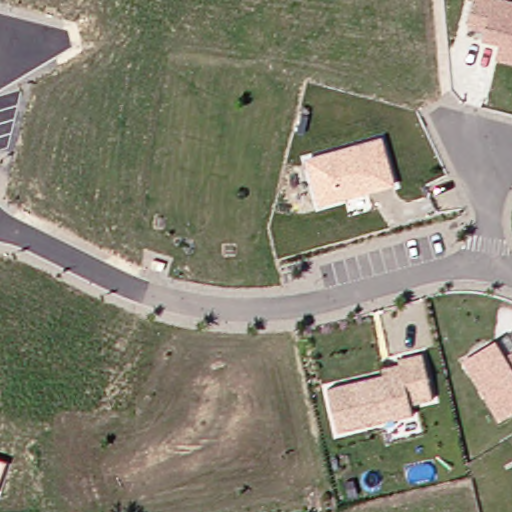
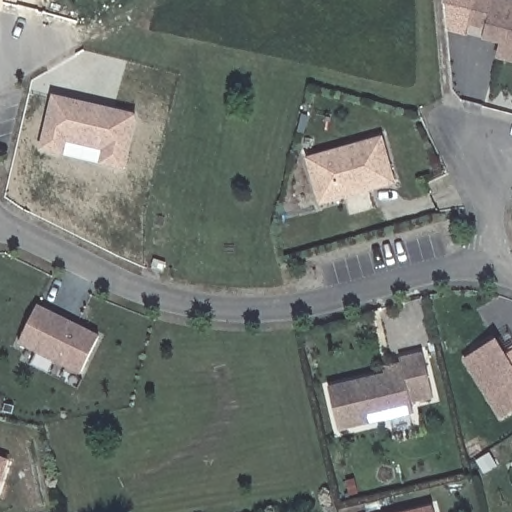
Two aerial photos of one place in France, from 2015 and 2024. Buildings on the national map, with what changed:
unchanged [(497,44),(480,41),(482,32),(467,30),(475,0),(512,0),(512,61),(494,56),(497,44)]
new [(40,150),(54,96),(136,115),(124,170),(40,150)]
unchanged [(318,206),(305,159),(382,137),(395,185),(318,206)]
new [(100,335),(81,375),(19,344),(39,305),(100,335)]
unchanged [(465,361),(502,338),(510,352),(512,350),(512,416),(500,423),(465,361)]
unchanged [(409,403),(412,415),(339,432),(328,390),(385,375),(383,367),(400,363),(398,357),(422,352),(433,398),(409,403)]
unchanged [(0,482),(0,458),(7,461),(0,482)]
unchanged [(434,506),(435,512),(409,512),(434,506)]

